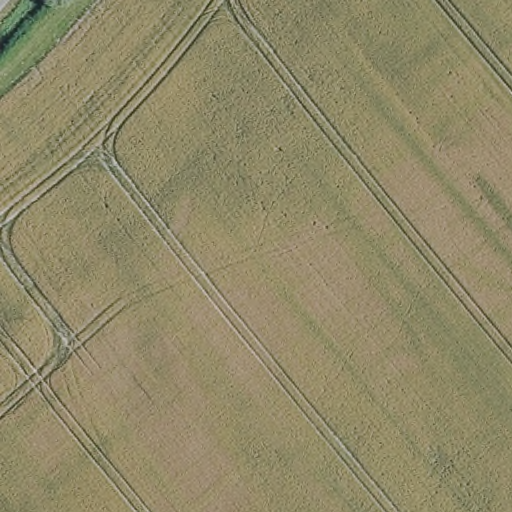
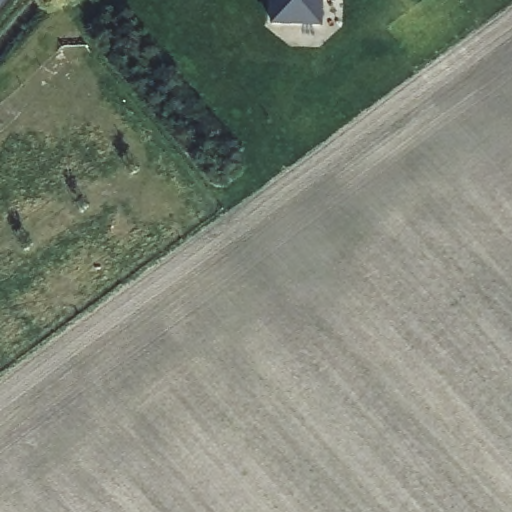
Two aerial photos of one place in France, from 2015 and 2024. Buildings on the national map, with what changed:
new [(323,27),(272,26),(272,0),(324,0),(323,27)]

